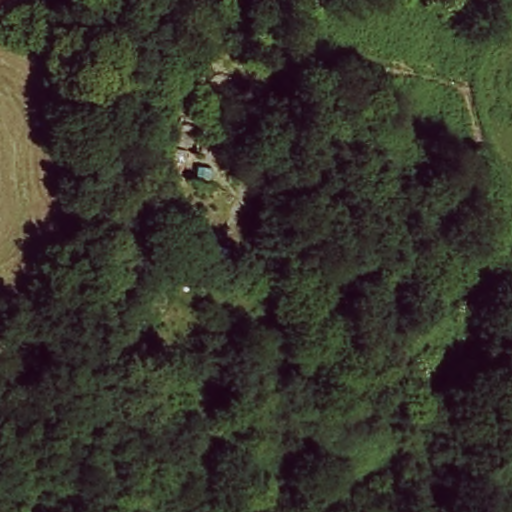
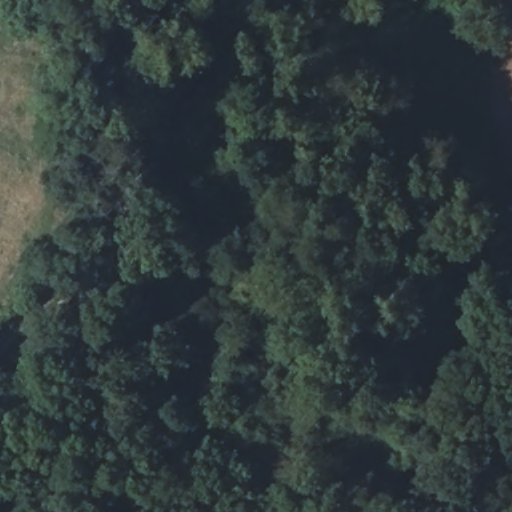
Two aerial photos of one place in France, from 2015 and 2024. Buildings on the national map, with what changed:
unchanged [(198,95),(203,49),(228,55),(221,89),(220,93),(219,99),(213,134),(190,126),(198,95)]
unchanged [(238,141),(225,197),(175,182),(190,126),(213,134),(238,141)]

